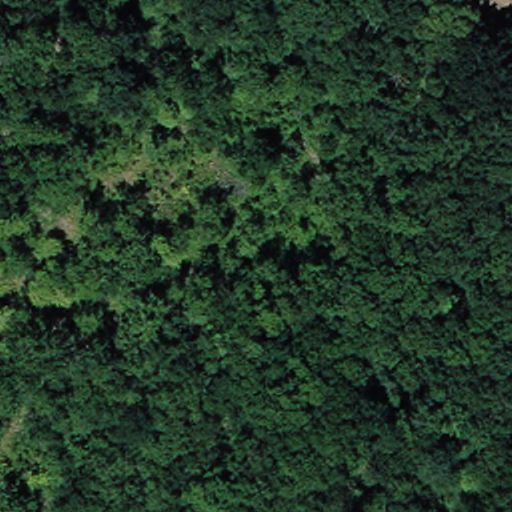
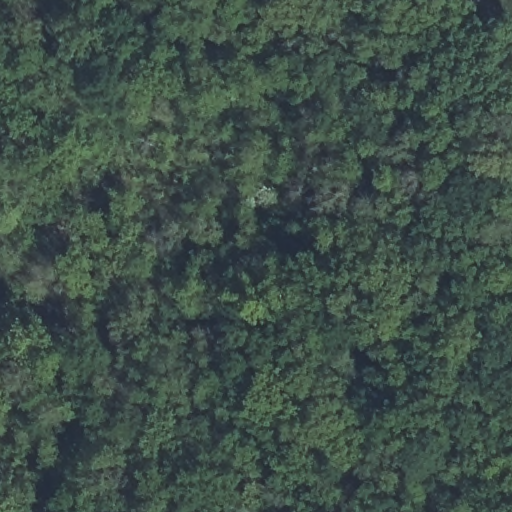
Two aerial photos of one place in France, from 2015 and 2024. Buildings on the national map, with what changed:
[]

